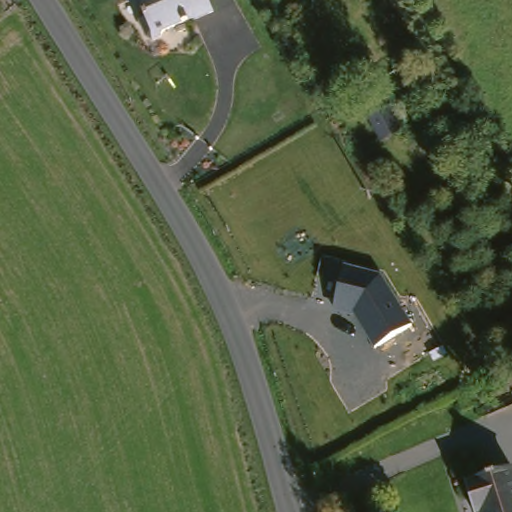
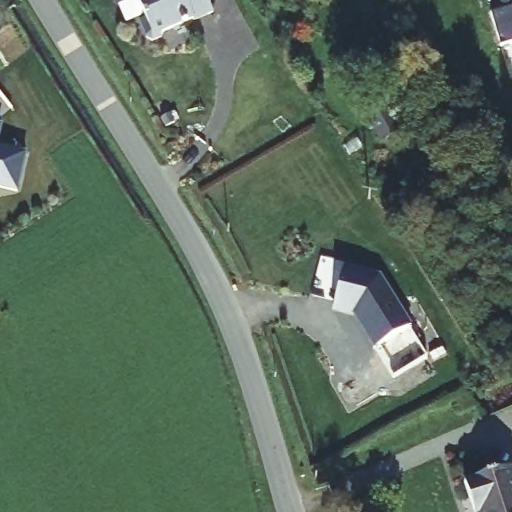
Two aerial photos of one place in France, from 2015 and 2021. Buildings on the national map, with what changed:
unchanged [(152,37),(143,23),(148,20),(134,0),(209,0),(194,10),(193,9),(166,27),(165,33),(158,38),(152,37)]
new [(512,6),(512,42),(498,46),(488,13),(512,6)]
unchanged [(368,109),(385,98),(398,119),(381,130),(368,109)]
new [(1,147),(30,155),(20,193),(0,188),(0,125),(6,126),(1,147)]
unchanged [(354,315),(333,310),(343,265),(381,276),(411,327),(374,349),(354,315)]
unchanged [(476,512),(467,481),(511,468),(512,470),(512,512),(476,512)]

